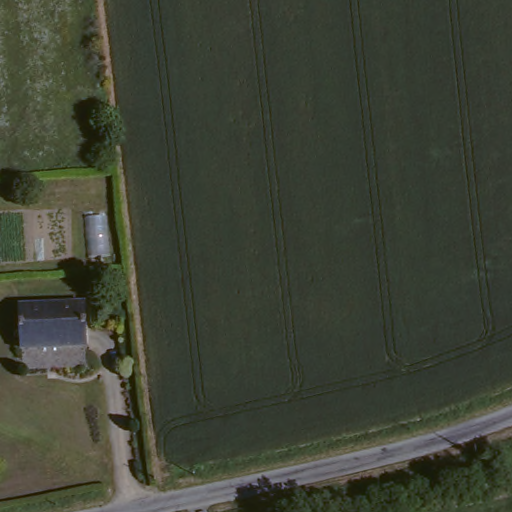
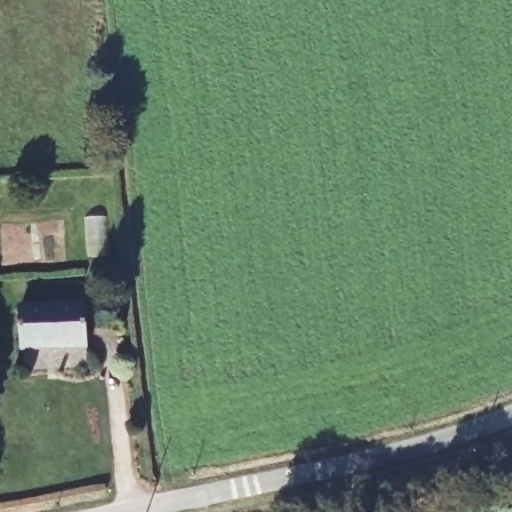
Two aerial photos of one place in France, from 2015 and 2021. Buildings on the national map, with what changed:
unchanged [(82,351),(16,355),(14,309),(79,306),(82,351)]

